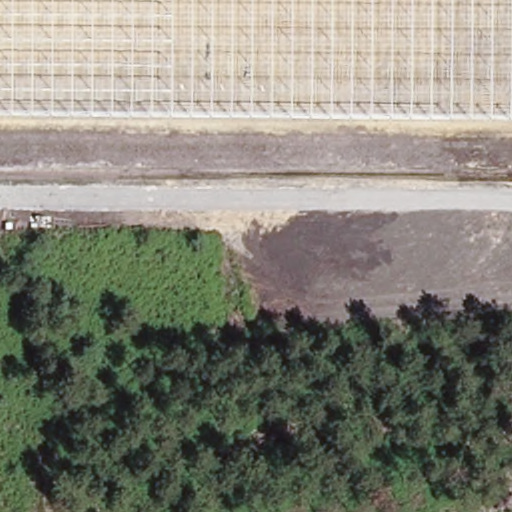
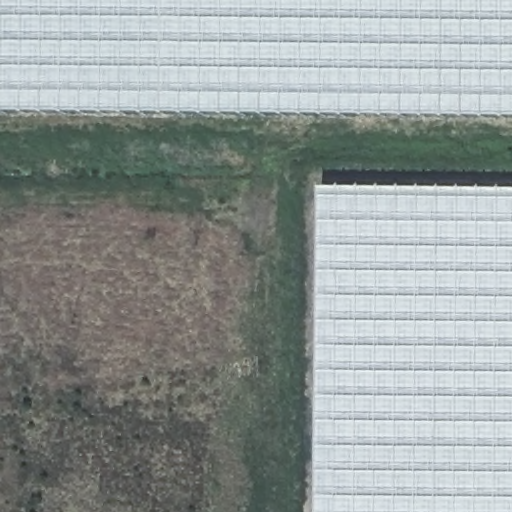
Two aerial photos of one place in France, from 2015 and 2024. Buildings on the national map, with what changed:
unchanged [(0,112),(0,0),(512,0),(512,117),(0,112)]
new [(326,189),(512,190),(512,512),(323,512),(326,189)]

